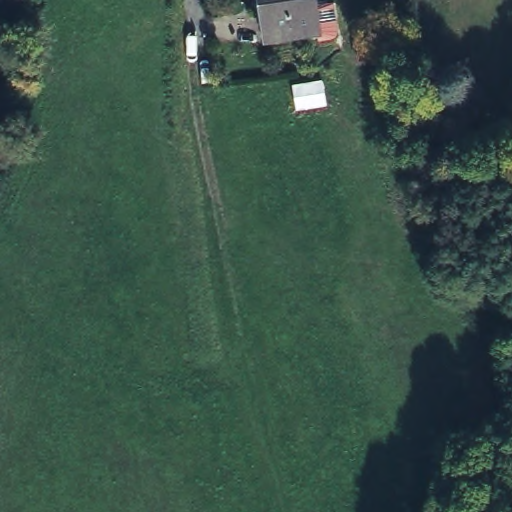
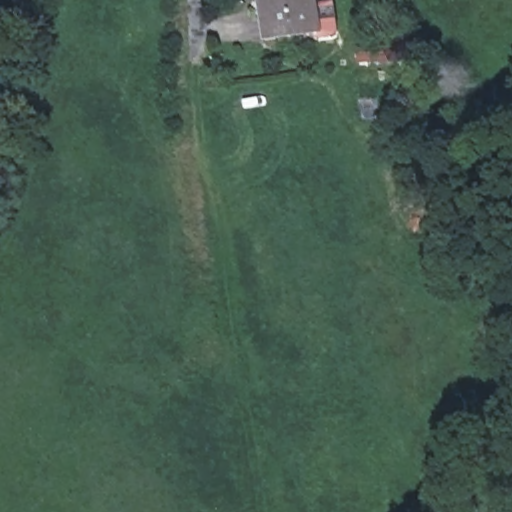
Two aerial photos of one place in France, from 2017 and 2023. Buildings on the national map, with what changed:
unchanged [(272,37),(267,0),(317,0),(322,29),(272,37)]
unchanged [(381,47),(382,61),(357,63),(357,49),(381,47)]

